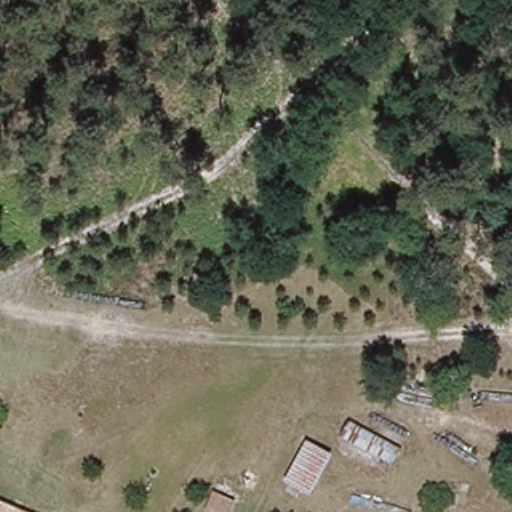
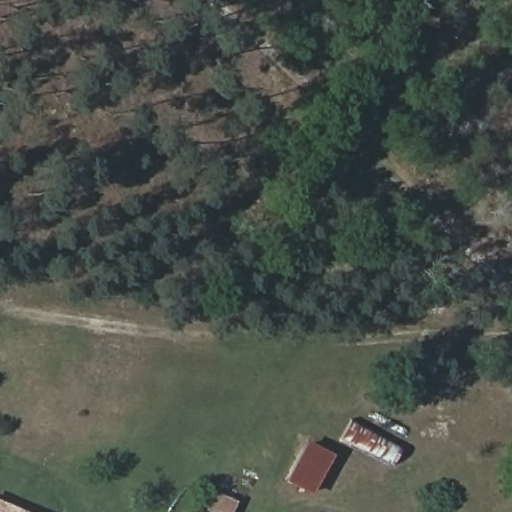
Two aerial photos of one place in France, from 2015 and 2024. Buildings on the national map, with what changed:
unchanged [(311,495),(285,482),(307,440),(335,455),(311,495)]
unchanged [(25,512),(0,512),(0,501),(25,512)]

